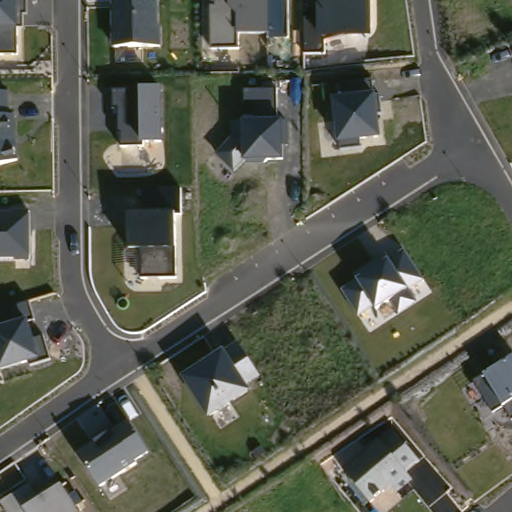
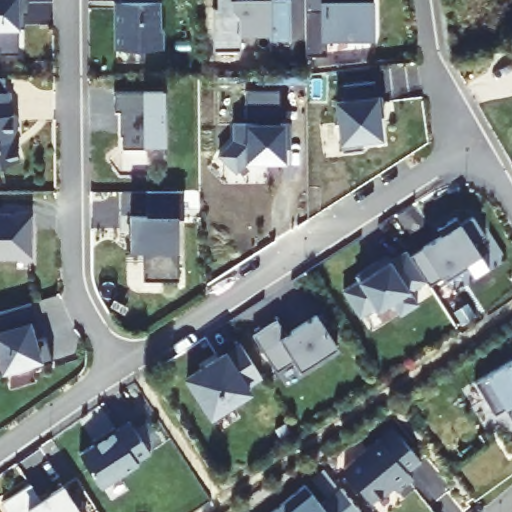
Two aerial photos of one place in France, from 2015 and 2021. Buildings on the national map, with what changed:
unchanged [(27,14),(23,14),(23,26),(17,27),(17,54),(0,54),(0,0),(27,0),(27,14)]
unchanged [(113,1),(120,1),(120,0),(159,0),(161,47),(113,48),(113,1)]
unchanged [(213,8),(217,7),(217,0),(288,0),(289,40),(271,40),(270,34),(238,35),(238,50),(213,49),(213,8)]
unchanged [(306,0),(372,0),(374,38),(344,37),(325,42),(325,56),(307,54),(306,0)]
unchanged [(374,95),(381,95),(383,115),(379,115),(381,139),(361,140),(361,148),(341,150),(340,142),(335,97),(345,95),(343,84),(372,80),(374,95)]
unchanged [(165,143),(142,144),(143,147),(123,147),(122,133),(120,133),(119,108),(114,109),(115,91),(142,91),(142,87),(163,87),(165,143)]
unchanged [(278,120),(290,120),(290,145),(284,145),(285,160),(270,160),(266,165),(249,165),(245,160),(235,173),(216,155),(244,124),(245,91),(277,90),(278,120)]
unchanged [(10,115),(16,115),(15,142),(20,160),(0,165),(0,92),(9,91),(10,115)]
unchanged [(182,190),(182,215),(176,216),(177,278),(141,278),(141,250),(131,249),(130,215),(146,214),(145,190),(182,190)]
unchanged [(30,211),(31,261),(17,260),(16,257),(0,257),(0,212),(30,211)]
new [(483,232),(471,240),(480,255),(466,265),(468,267),(445,281),(442,277),(428,286),(424,281),(409,256),(423,247),(461,222),(472,215),(483,232)]
unchanged [(424,281),(411,290),(419,302),(400,316),(390,301),(377,310),(374,308),(359,318),(342,289),(405,250),(424,281)]
unchanged [(30,302),(35,321),(31,323),(35,340),(45,338),(52,360),(30,366),(29,362),(0,371),(0,310),(30,302)]
new [(273,321),(283,335),(313,316),(334,349),(297,373),(291,362),(273,374),(249,336),(273,321)]
unchanged [(261,377),(248,385),(252,392),(210,419),(182,377),(239,341),(261,377)]
unchanged [(493,415),(474,382),(512,358),(512,419),(504,406),(493,415)]
unchanged [(150,450),(135,461),(137,463),(100,488),(78,451),(131,420),(150,450)]
unchanged [(393,430),(419,463),(409,470),(412,476),(372,505),(343,472),(393,430)]
unchanged [(9,512),(2,501),(33,483),(42,497),(62,484),(79,512),(9,512)]

